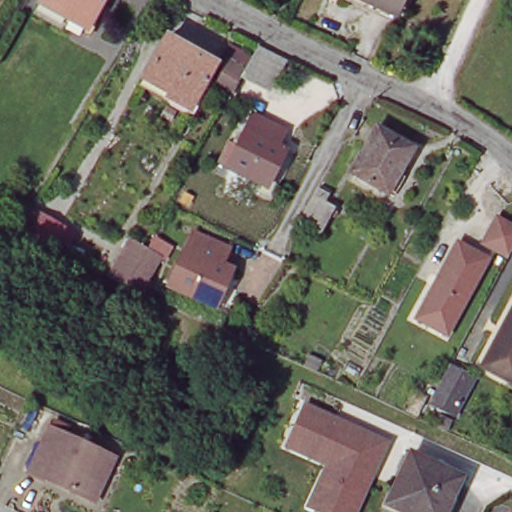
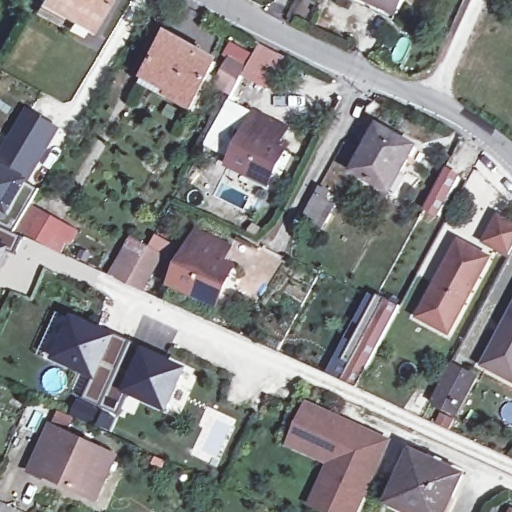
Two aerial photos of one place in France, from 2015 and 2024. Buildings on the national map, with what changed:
unchanged [(98,25),(79,13),(74,22),(38,2),(39,0),(112,0),(98,25)]
unchanged [(394,16),(357,0),(401,0),(394,16)]
unchanged [(215,65),(190,111),(172,99),(174,94),(147,77),(169,37),(215,65)]
unchanged [(233,71),(247,79),(260,55),(292,69),(276,100),(242,86),(238,94),(233,103),(219,96),(233,71)]
new [(27,105),(62,130),(31,180),(28,185),(38,191),(28,209),(20,205),(5,229),(0,226),(0,151),(27,105)]
unchanged [(230,152),(235,152),(240,141),(245,142),(255,125),(284,141),(278,156),(285,159),(268,192),(221,171),(230,152)]
unchanged [(414,148),(401,172),(405,175),(396,196),(353,171),(377,127),(414,148)]
unchanged [(317,188),(327,194),(324,202),(333,207),(322,231),(300,219),(317,188)]
unchanged [(66,228),(55,251),(5,229),(20,205),(66,228)]
unchanged [(512,246),(508,252),(484,239),(498,214),(512,222),(512,245),(512,246)]
new [(5,229),(22,236),(14,256),(10,255),(0,278),(0,226),(5,229)]
unchanged [(201,230),(230,244),(226,255),(237,261),(219,302),(177,280),(201,230)]
unchanged [(415,312),(422,299),(456,237),(459,240),(485,254),(444,328),(428,319),(418,313),(415,312)]
unchanged [(128,282),(109,273),(115,262),(128,238),(147,248),(164,257),(155,274),(146,291),(128,282)]
unchanged [(512,316),(512,377),(487,362),(512,316)]
new [(75,321),(111,337),(113,332),(133,342),(104,407),(84,398),(95,374),(59,358),(75,321)]
new [(133,342),(148,348),(146,353),(183,368),(168,406),(131,390),(121,415),(104,407),(133,342)]
unchanged [(452,366),(476,381),(458,415),(432,401),(452,366)]
unchanged [(358,512),(321,512),(309,507),(327,468),(288,447),(310,401),(392,442),(358,512)]
unchanged [(110,482),(102,500),(75,487),(77,482),(56,472),(54,477),(35,468),(54,424),(113,451),(122,455),(110,482)]
unchanged [(418,451),(468,473),(459,495),(450,512),(418,512),(395,501),(418,451)]
unchanged [(512,512),(507,512),(508,510),(512,512)]

